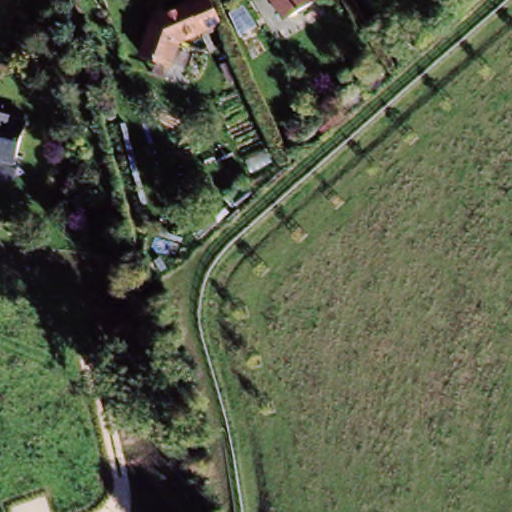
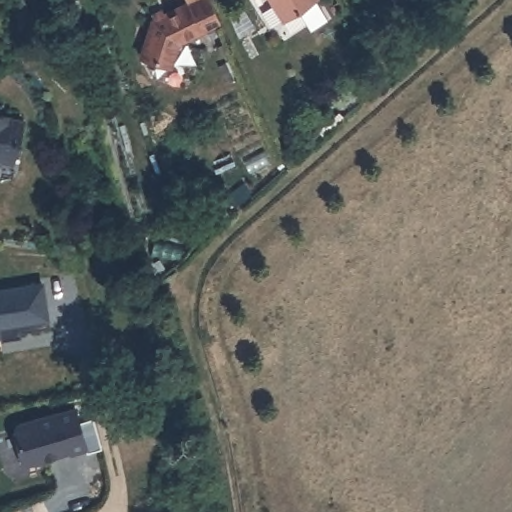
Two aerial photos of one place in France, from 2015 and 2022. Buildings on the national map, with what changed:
unchanged [(211,27),(168,46),(160,69),(129,58),(143,22),(177,6),(178,8),(195,0),(198,0),(207,20),(211,27)]
unchanged [(265,0),(311,0),(278,21),(265,0)]
unchanged [(5,158),(0,161),(0,115),(15,119),(5,158)]
new [(48,327),(19,331),(20,336),(0,339),(0,289),(40,283),(48,327)]
new [(18,423),(76,407),(88,448),(72,452),(71,450),(24,463),(14,430),(18,423)]

